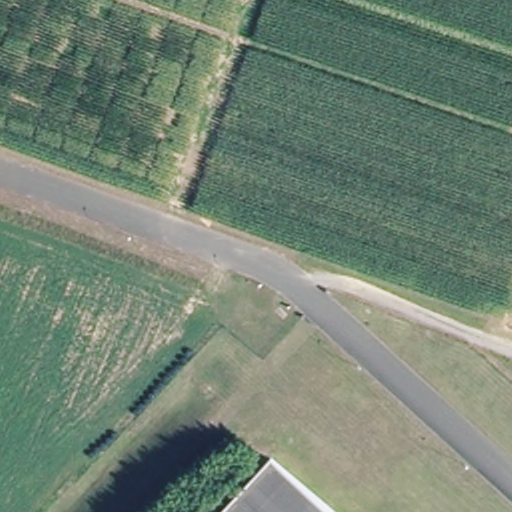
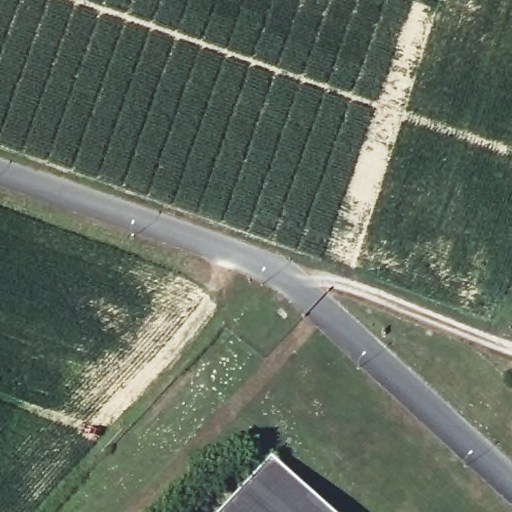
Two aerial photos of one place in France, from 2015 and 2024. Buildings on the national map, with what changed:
unchanged [(337,512),(219,512),(273,454),(337,512)]

